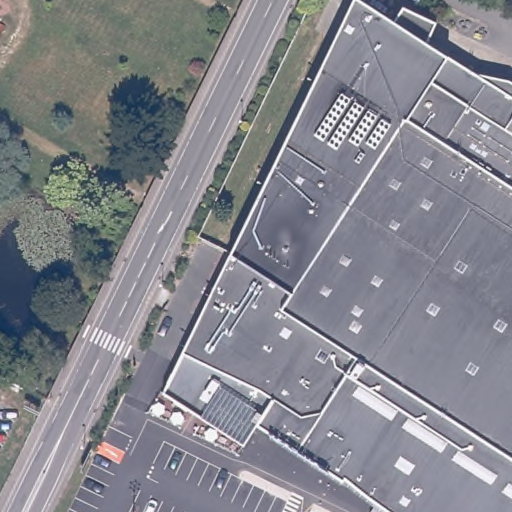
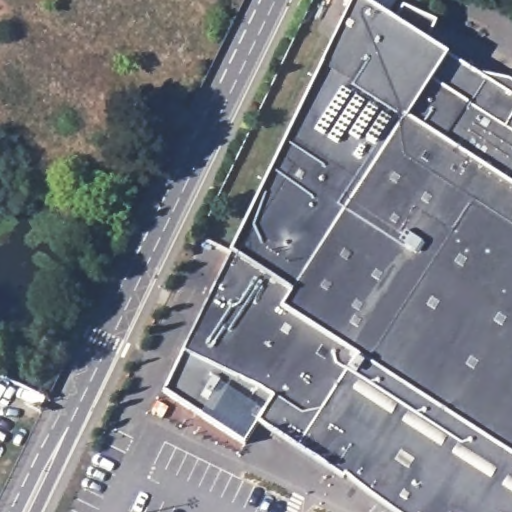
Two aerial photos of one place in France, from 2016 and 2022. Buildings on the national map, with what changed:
unchanged [(392,509),(388,506),(387,505),(382,501),(380,500),(377,497),(374,495),(371,493),(371,492),(366,488),(363,485),(362,485),(359,483),(357,481),(354,479),(352,477),(351,476),(348,473),(258,419),(243,443),(164,390),(187,351),(193,338),(244,233),(358,0),(366,0),(396,18),(404,4),(439,20),(427,38),(478,70),(512,91),(512,512),(396,512),(394,510),(392,509)]
unchanged [(495,66),(512,76),(512,91),(478,70),(495,66)]

